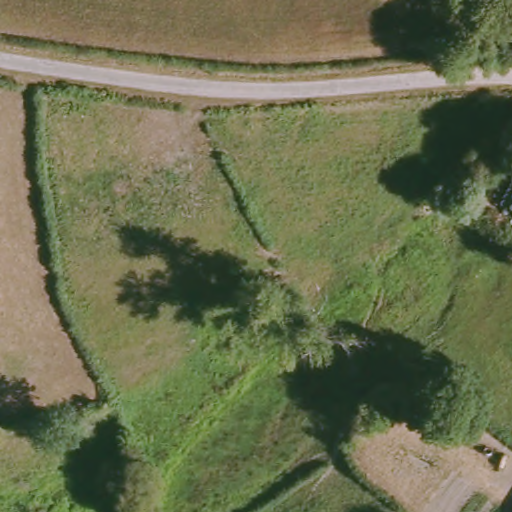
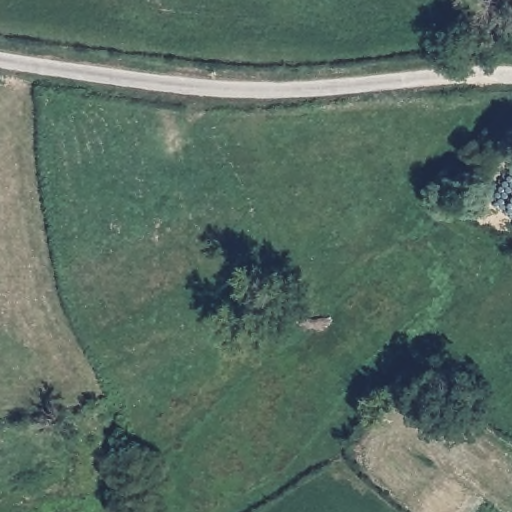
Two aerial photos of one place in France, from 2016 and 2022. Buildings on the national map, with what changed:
[]

